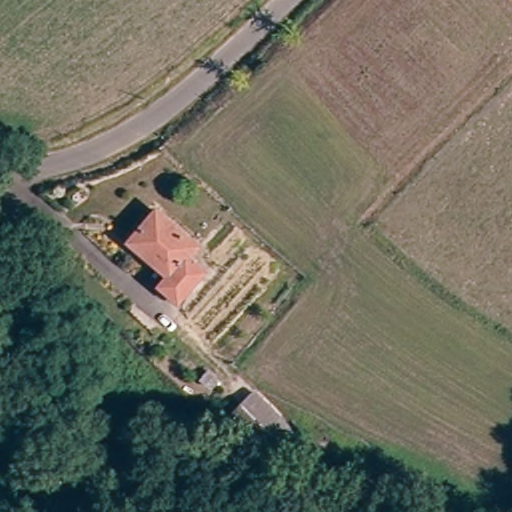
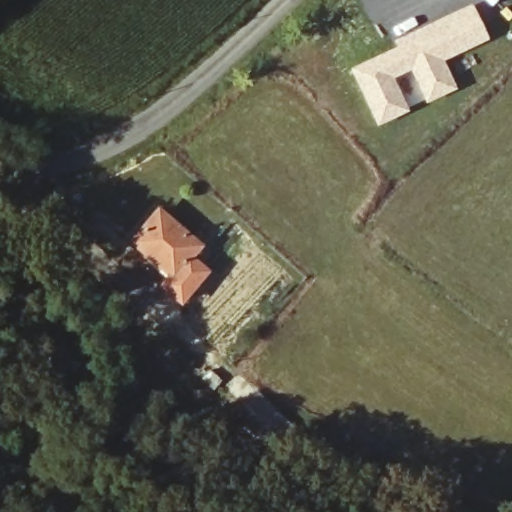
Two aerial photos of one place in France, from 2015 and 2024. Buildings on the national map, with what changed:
new [(486,37),(440,57),(453,88),(380,122),(355,72),(440,32),(436,24),(470,9),(486,37)]
unchanged [(154,292),(165,280),(128,244),(154,217),(191,252),(182,264),(200,282),(174,311),(154,292)]
unchanged [(270,402),(286,422),(263,441),(247,421),(270,402)]
unchanged [(367,473),(390,479),(388,497),(363,492),(367,473)]

